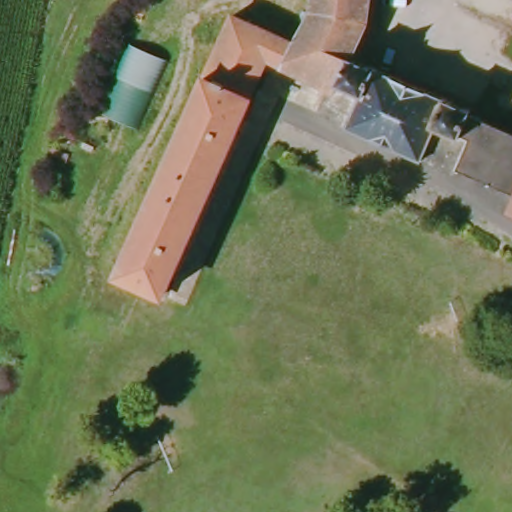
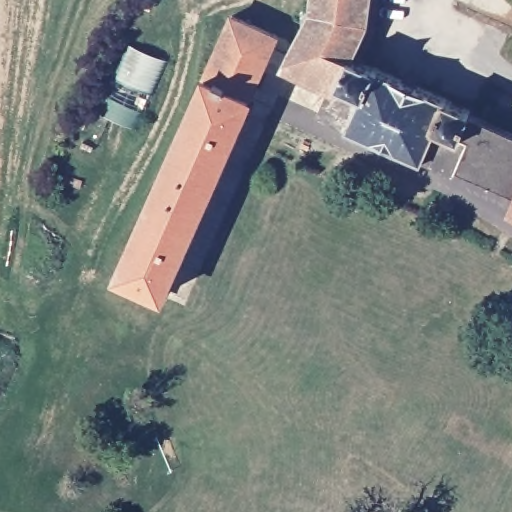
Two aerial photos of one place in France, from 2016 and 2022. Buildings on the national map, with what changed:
unchanged [(238,15),(286,35),(297,0),(362,0),(363,25),(349,58),(336,50),(319,85),(272,67),(177,299),(131,280),(238,15)]
unchanged [(336,50),(349,58),(463,105),(460,109),(442,170),(308,114),(319,85),(336,50)]
unchanged [(504,217),(512,199),(442,170),(460,109),(512,130),(512,220),(504,217)]

